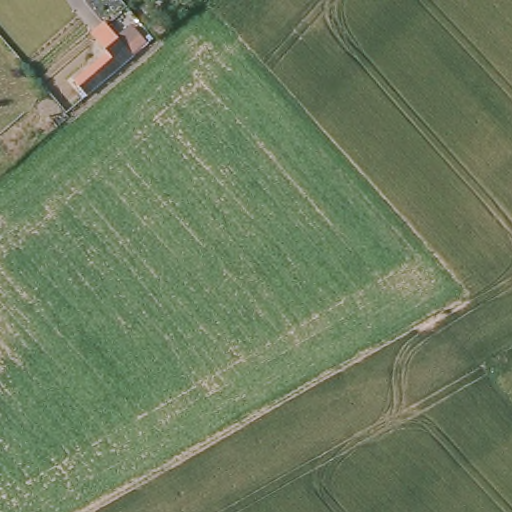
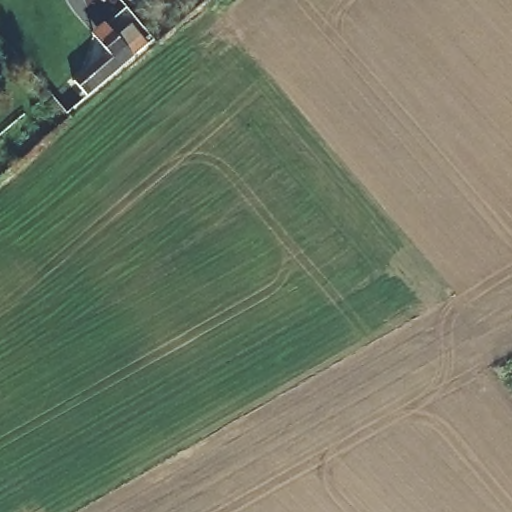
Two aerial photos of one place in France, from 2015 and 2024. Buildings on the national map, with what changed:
unchanged [(133,52),(83,95),(74,83),(105,57),(99,49),(117,35),(133,52)]

